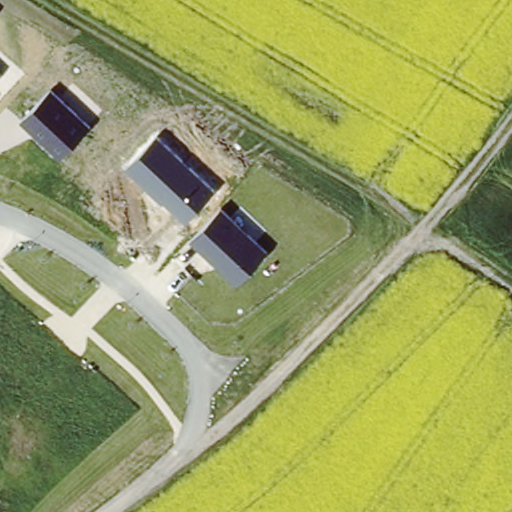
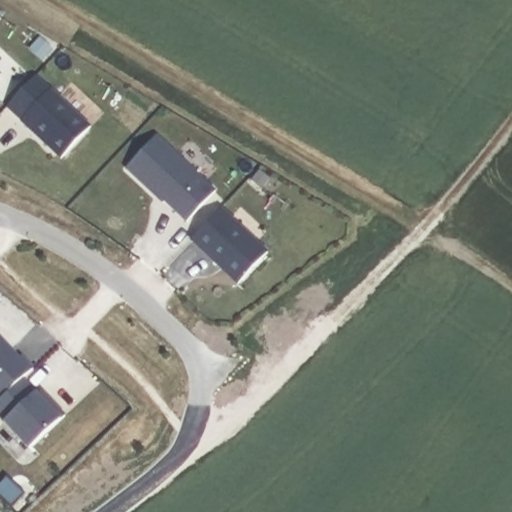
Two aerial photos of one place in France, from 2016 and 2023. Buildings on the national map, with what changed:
unchanged [(23,121),(53,87),(91,123),(61,155),(23,121)]
unchanged [(164,200),(161,201),(127,167),(157,133),(215,189),(186,221),(164,200)]
unchanged [(192,239),(221,206),(267,251),(236,282),(192,239)]
new [(19,357),(21,355),(34,368),(23,378),(0,400),(0,337),(19,357)]
new [(23,378),(38,395),(42,391),(52,402),(65,416),(29,449),(0,418),(0,400),(23,378)]

